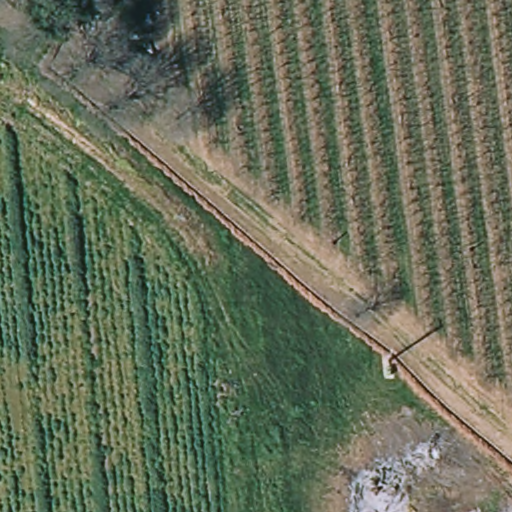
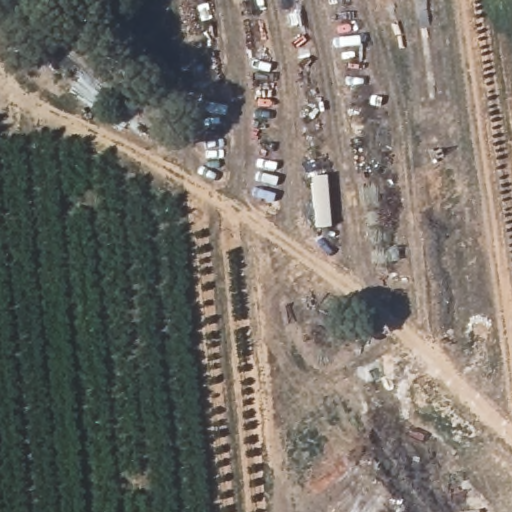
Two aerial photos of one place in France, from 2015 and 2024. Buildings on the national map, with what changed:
unchanged [(79,2),(76,2),(73,0),(84,0),(84,1),(79,2)]

